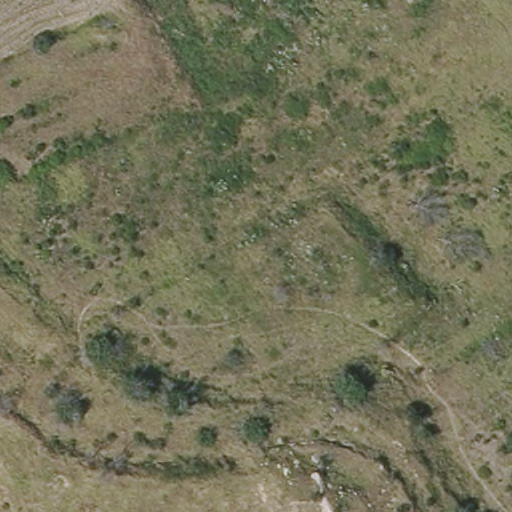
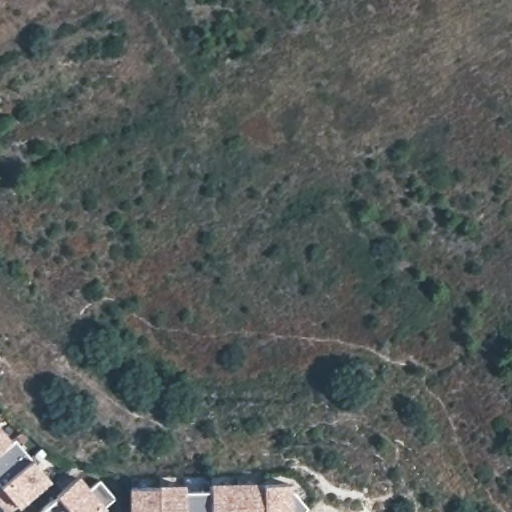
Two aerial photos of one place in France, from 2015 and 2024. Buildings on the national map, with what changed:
new [(0,448),(0,432),(8,441),(0,448)]
new [(11,437),(29,458),(0,483),(0,448),(8,441),(11,437)]
new [(47,478),(8,512),(0,503),(0,483),(29,458),(47,478)]
new [(74,478),(86,491),(98,481),(113,498),(101,509),(105,512),(70,512),(56,496),(55,497),(54,495),(74,478)]
new [(261,483),(262,512),(236,512),(235,484),(261,483)]
new [(261,483),(287,483),(288,491),(292,491),(307,508),(302,512),(262,512),(261,483)]
new [(235,484),(236,512),(209,512),(208,490),(208,485),(235,484)]
new [(183,486),(183,491),(182,491),(183,512),(157,512),(156,487),(183,486)]
new [(156,487),(157,512),(130,512),(129,487),(156,487)]
new [(183,491),(208,490),(209,512),(183,512),(182,491),(183,491)]
new [(55,497),(56,496),(70,512),(37,512),(55,497)]

